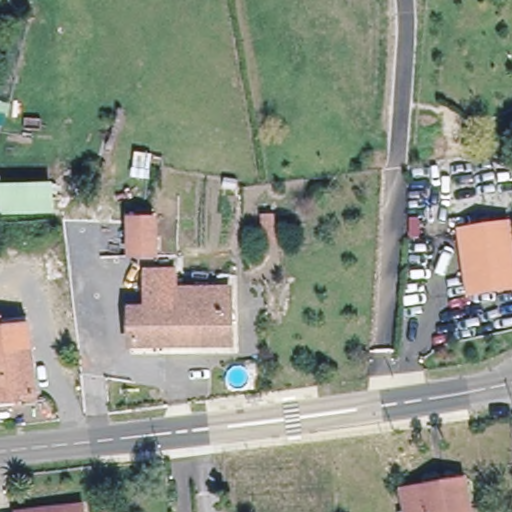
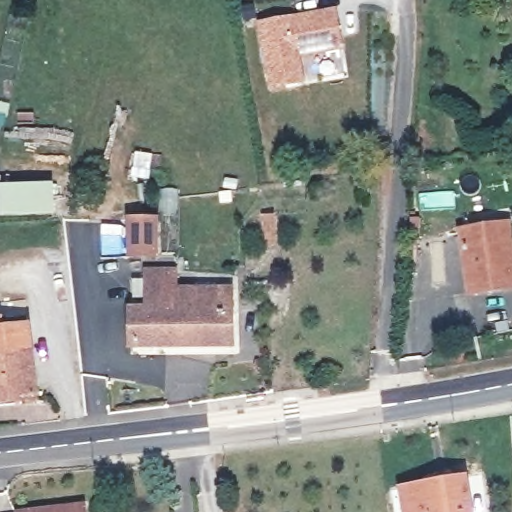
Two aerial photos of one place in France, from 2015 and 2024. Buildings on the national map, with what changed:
new [(344,49),(303,57),(306,84),(271,90),(259,20),(336,5),(344,49)]
unchanged [(57,211),(1,212),(0,192),(0,185),(57,182),(57,211)]
unchanged [(155,221),(154,255),(130,255),(130,220),(155,221)]
unchanged [(510,220),(512,230),(512,282),(473,287),(464,227),(510,220)]
unchanged [(175,347),(130,346),(130,310),(154,310),(154,290),(179,290),(175,347)]
unchanged [(231,290),(232,347),(175,347),(179,290),(231,290)]
unchanged [(35,400),(0,404),(0,321),(26,318),(35,400)]
unchanged [(468,512),(406,512),(403,491),(464,482),(468,512)]
unchanged [(27,512),(51,509),(85,506),(85,512),(27,512)]

